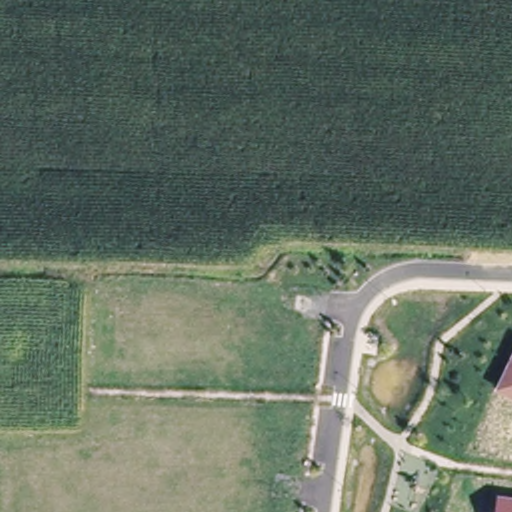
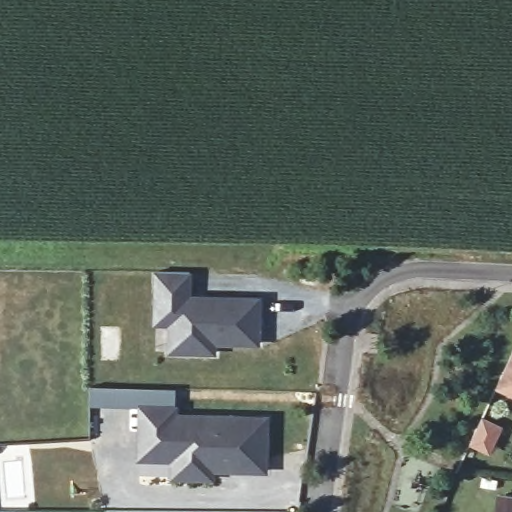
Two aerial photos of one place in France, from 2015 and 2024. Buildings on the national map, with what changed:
new [(190,276),(189,302),(259,305),(257,348),(214,346),(214,356),(170,355),(171,327),(156,326),(157,301),(158,275),(190,276)]
unchanged [(494,391),(512,352),(512,401),(494,391)]
new [(140,410),(175,411),(175,419),(266,422),(264,475),(211,473),(211,464),(138,461),(140,410)]
new [(482,415),(501,425),(494,437),(490,447),(472,437),(476,428),(482,415)]
unchanged [(512,498),(512,512),(494,512),(496,495),(512,498)]

